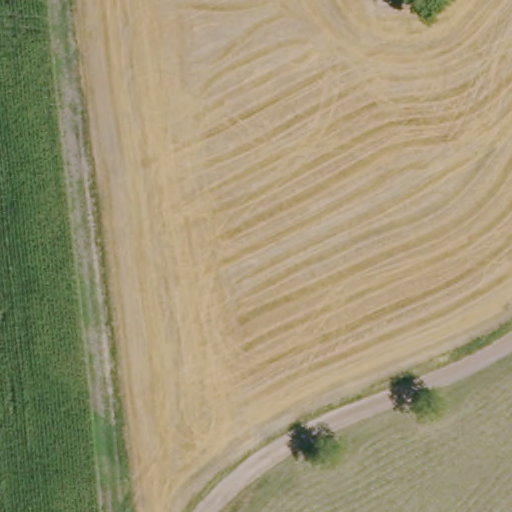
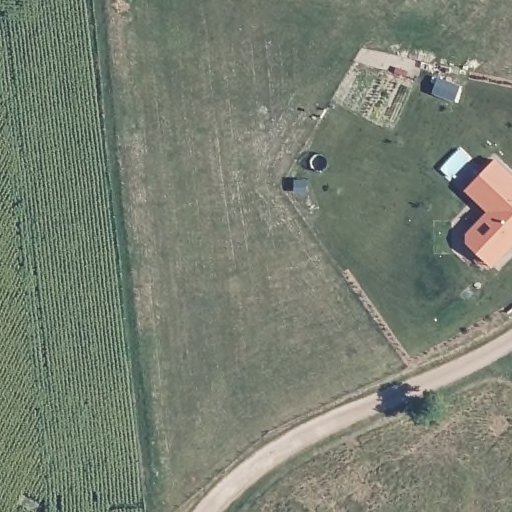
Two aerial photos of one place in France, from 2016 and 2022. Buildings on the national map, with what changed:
new [(488,212),(467,191),(497,160),(512,175),(512,248),(493,268),(468,244),(468,234),(488,212)]

